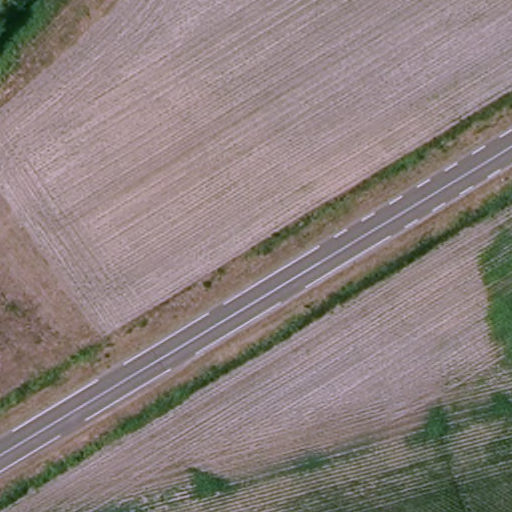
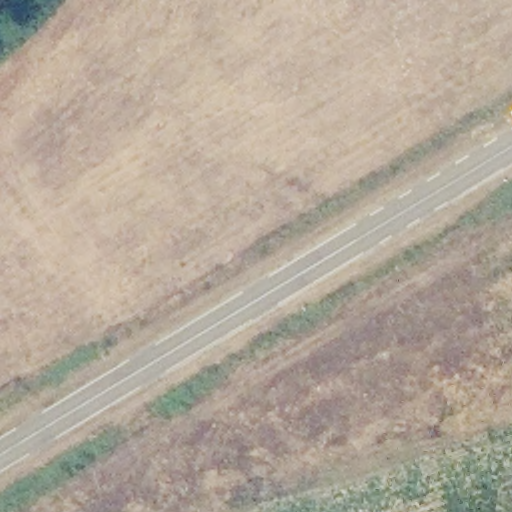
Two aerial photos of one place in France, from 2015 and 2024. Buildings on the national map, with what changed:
[]

